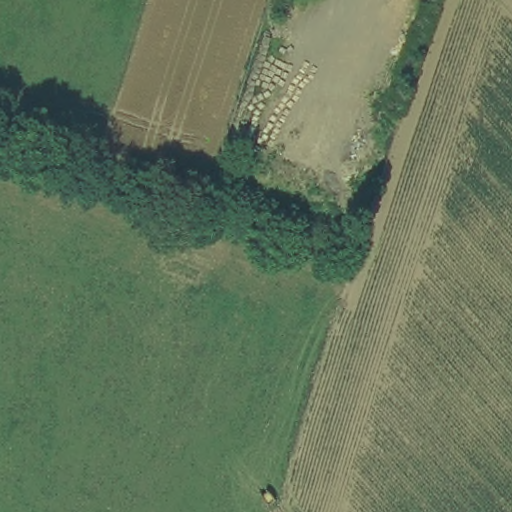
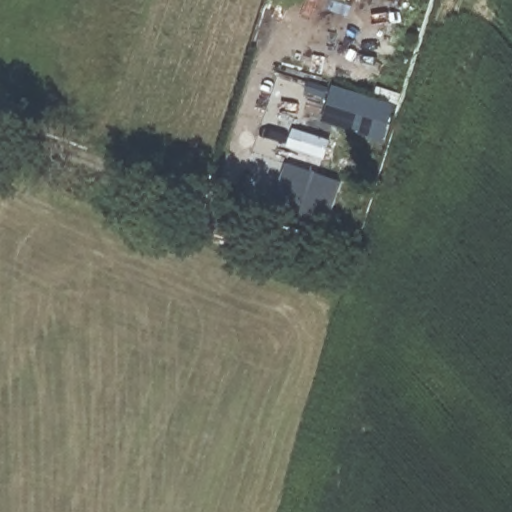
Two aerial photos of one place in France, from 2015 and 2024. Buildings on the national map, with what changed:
new [(336,85),(375,97),(380,86),(406,95),(395,127),(391,126),(385,144),(325,124),(336,85)]
new [(290,163),(345,182),(326,231),(272,211),(290,163)]

